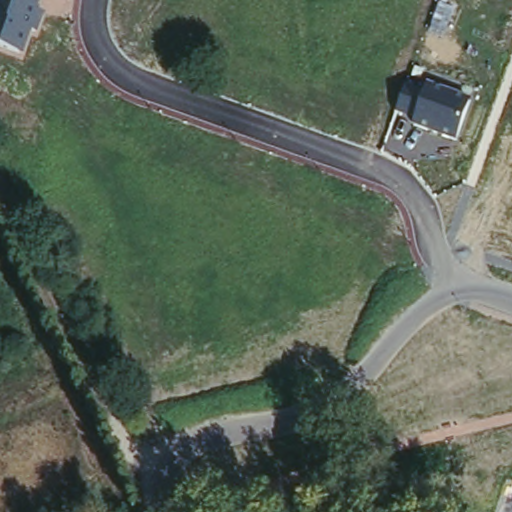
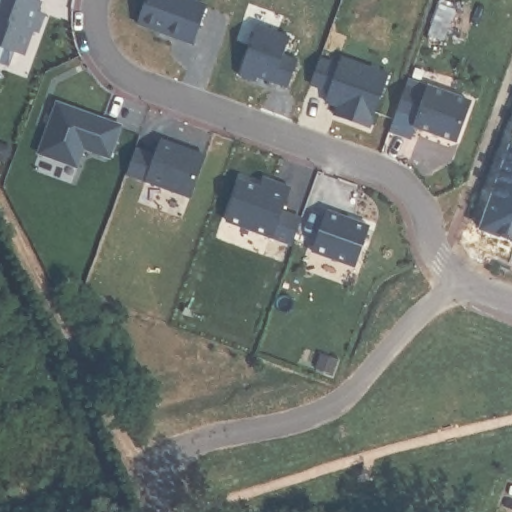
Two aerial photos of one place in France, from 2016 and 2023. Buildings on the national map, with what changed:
unchanged [(37,1),(44,4),(41,12),(46,14),(39,34),(35,32),(26,60),(0,50),(0,0),(37,0),(37,1)]
new [(142,0),(182,0),(205,11),(188,47),(132,22),(142,0)]
new [(286,34),(280,51),(293,54),(281,85),(238,72),(253,25),(286,34)]
unchanged [(457,145),(412,129),(416,118),(394,111),(405,82),(425,90),(428,84),(473,101),(457,145)]
new [(57,96),(122,117),(107,157),(78,147),(69,167),(37,152),(57,96)]
new [(512,137),(512,241),(480,231),(512,137)]
new [(133,150),(151,157),(156,142),(197,155),(186,194),(126,175),(133,150)]
new [(238,182),(287,197),(281,215),(297,220),(290,240),(224,219),(238,182)]
new [(323,211),(366,224),(353,263),(310,250),(323,211)]

